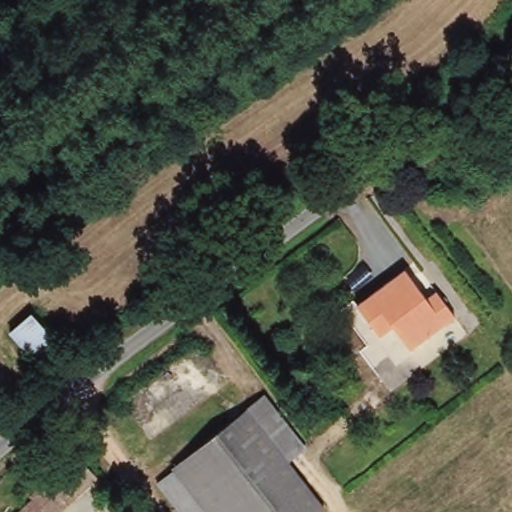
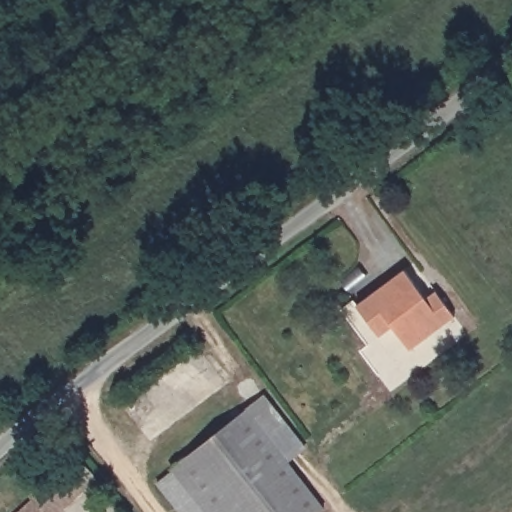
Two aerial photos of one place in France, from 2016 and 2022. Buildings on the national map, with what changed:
unchanged [(407,350),(388,326),(376,335),(354,304),(402,268),(423,296),(433,288),(441,298),(454,315),(407,350)]
unchanged [(38,370),(5,334),(31,312),(61,348),(38,370)]
unchanged [(243,414),(263,399),(304,451),(285,466),(321,512),(168,512),(150,489),(243,414)]
unchanged [(60,512),(14,512),(77,452),(98,476),(60,512)]

